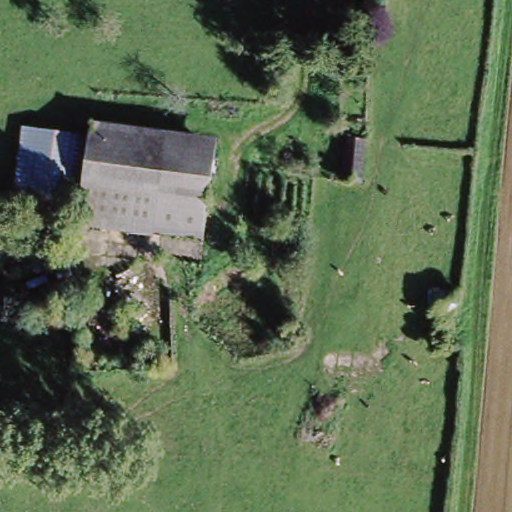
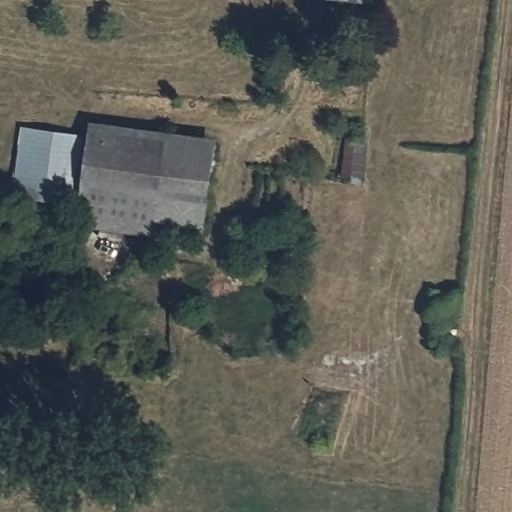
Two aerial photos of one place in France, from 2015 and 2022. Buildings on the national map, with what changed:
unchanged [(88,126),(162,135),(149,236),(73,226),(76,207),(86,139),(88,126)]
unchanged [(17,130),(86,139),(76,207),(7,197),(17,130)]
unchanged [(162,135),(220,142),(207,243),(149,236),(162,135)]
unchanged [(332,179),(330,140),(356,139),(357,178),(332,179)]
unchanged [(426,296),(452,295),(444,329),(423,327),(426,296)]

